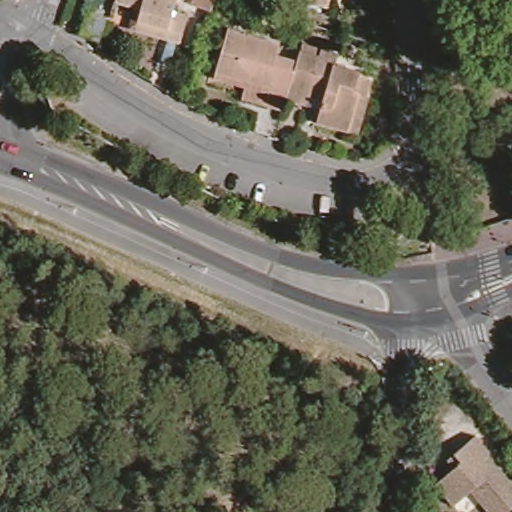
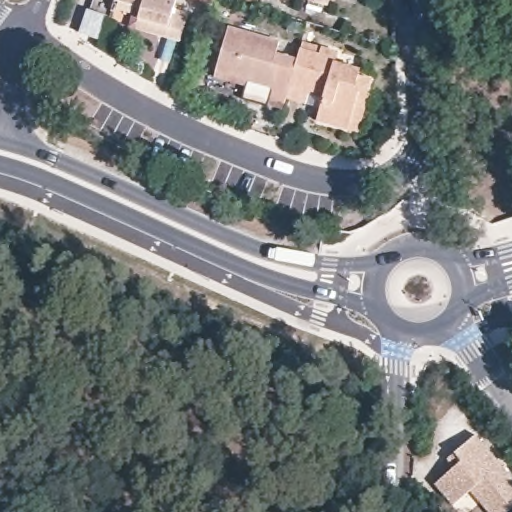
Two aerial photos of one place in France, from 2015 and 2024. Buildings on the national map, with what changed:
unchanged [(131,2),(124,0),(164,0),(163,4),(178,8),(170,35),(155,31),(125,22),(128,13),(131,2)]
unchanged [(212,1),(210,8),(191,2),(191,0),(212,0),(212,1)]
unchanged [(259,2),(250,0),(260,0),(259,2)]
unchanged [(106,16),(98,37),(81,31),(88,10),(106,16)]
unchanged [(228,27),(279,42),(276,54),(296,59),(286,97),(284,103),(268,99),(271,86),(215,71),(228,27)]
unchanged [(348,129),(316,119),(320,107),(306,103),(286,97),(296,59),(300,48),(320,54),(321,47),(338,52),(336,63),(360,69),(359,75),(370,78),(366,95),(359,94),(358,97),(356,131),(348,129)]
unchanged [(435,484),(455,467),(448,459),(455,453),(475,437),(512,481),(512,509),(508,512),(488,512),(480,502),(469,512),(458,512),(453,505),(435,484)]

